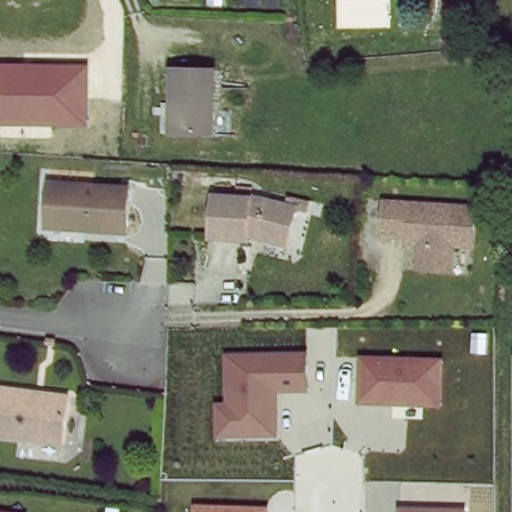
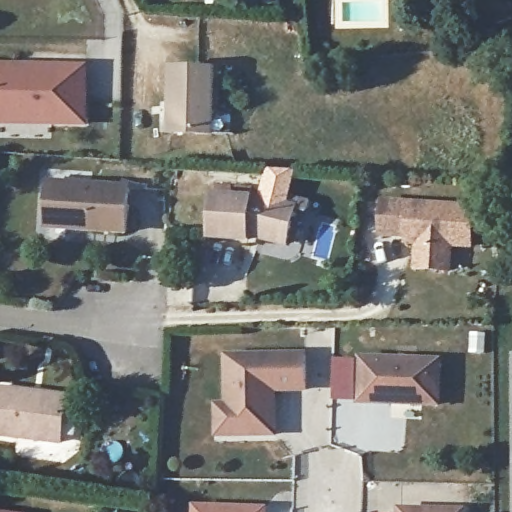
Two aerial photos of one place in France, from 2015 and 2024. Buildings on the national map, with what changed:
unchanged [(279,45),(279,52),(273,52),(272,45),(279,45)]
unchanged [(89,126),(0,125),(0,63),(90,64),(89,126)]
unchanged [(175,69),(214,70),(213,86),(213,133),(201,133),(173,132),(175,69)]
unchanged [(82,229),(82,224),(45,222),(48,183),(127,189),(124,232),(82,229)]
unchanged [(248,241),(246,246),(209,244),(212,201),(248,204),(250,201),(286,210),(297,213),(293,227),(286,249),(248,241)]
unchanged [(408,237),(382,236),(384,204),(476,211),(474,233),(473,249),(462,249),(452,248),(450,273),(418,271),(419,245),(408,245),(408,237)]
unchanged [(310,352),(311,395),(277,395),(276,439),(213,439),(213,402),(224,401),(222,353),(310,352)]
unchanged [(442,356),(440,408),(355,406),(357,355),(442,356)]
unchanged [(0,440),(0,393),(35,397),(70,402),(68,411),(63,449),(13,442),(0,440)]
unchanged [(119,512),(108,512),(109,505),(120,506),(119,512)]
unchanged [(269,512),(190,512),(191,505),(270,508),(269,512)]
unchanged [(467,510),(466,512),(397,512),(397,507),(467,510)]

